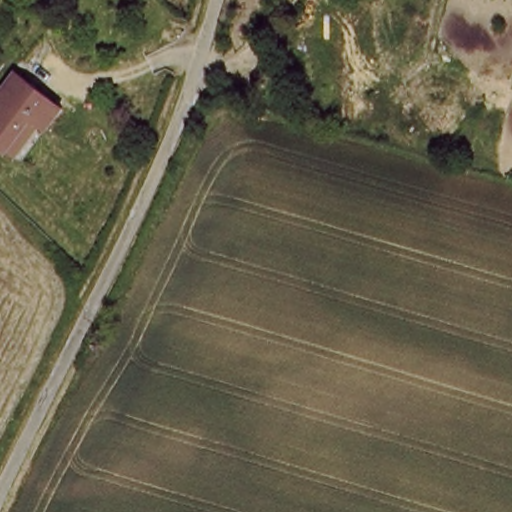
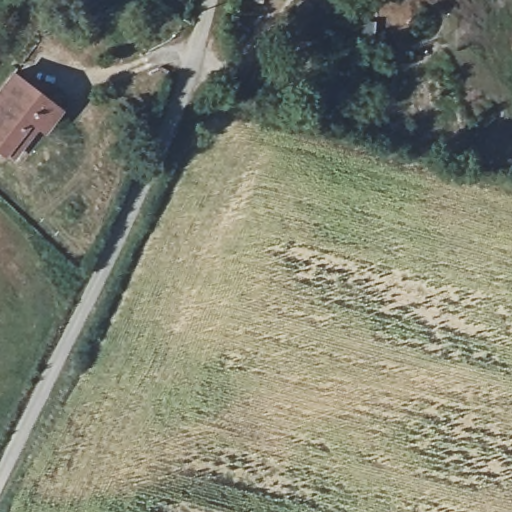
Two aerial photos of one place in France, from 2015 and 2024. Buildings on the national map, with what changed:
unchanged [(0,152),(0,84),(9,72),(59,108),(44,129),(36,123),(9,159),(0,152)]

